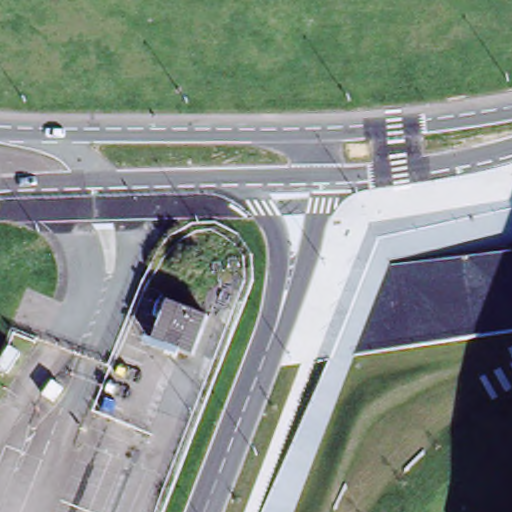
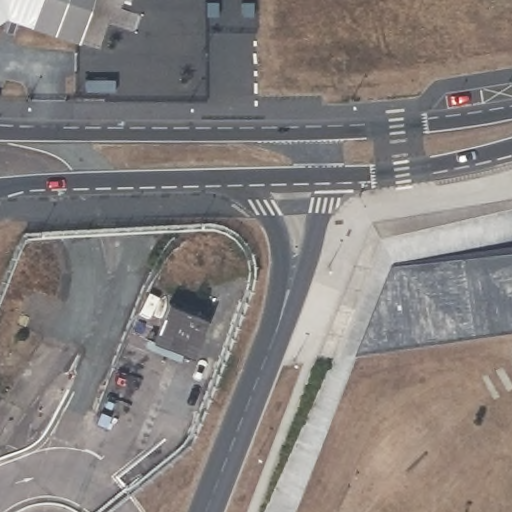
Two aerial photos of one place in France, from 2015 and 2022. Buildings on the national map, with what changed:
new [(78,43),(7,20),(0,24),(0,0),(93,0),(78,43)]
unchanged [(166,303),(208,317),(194,357),(153,341),(166,303)]
demolished [(1,367),(15,346),(22,352),(8,373),(1,367)]
demolished [(60,403),(45,396),(55,380),(70,387),(60,403)]

